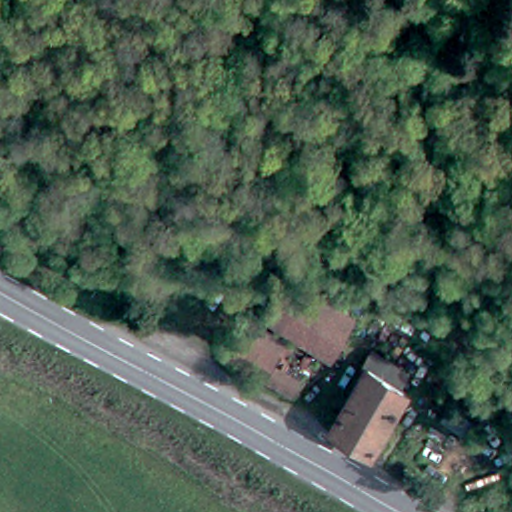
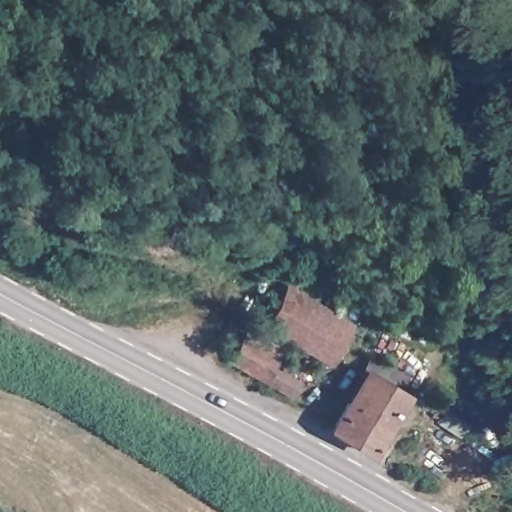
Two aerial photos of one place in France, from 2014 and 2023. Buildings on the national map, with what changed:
unchanged [(333,356),(267,322),(270,316),(285,292),(350,327),(335,352),(333,356)]
unchanged [(312,352),(294,386),(230,350),(247,318),(312,352)]
unchanged [(367,458),(330,438),(332,434),(362,385),(372,370),(406,389),(397,404),(399,406),(367,458)]

